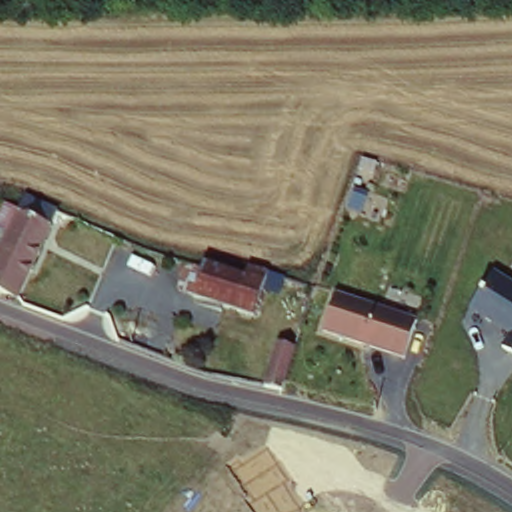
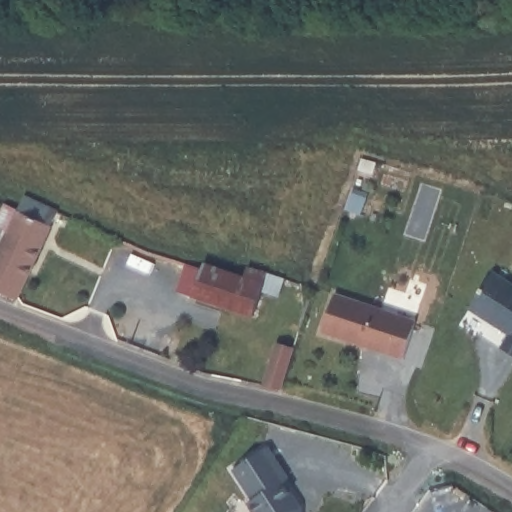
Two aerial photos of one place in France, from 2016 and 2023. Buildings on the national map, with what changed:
unchanged [(15,207),(48,221),(16,303),(0,296),(0,215),(10,219),(15,207)]
unchanged [(250,319),(189,299),(191,293),(175,287),(184,263),(199,267),(203,262),(240,275),(244,264),(268,272),(250,319)]
unchanged [(500,350),(507,335),(472,312),(494,272),(512,283),(512,356),(500,350)]
unchanged [(327,333),(339,294),(419,321),(406,361),(327,333)]
unchanged [(260,388),(275,345),(292,352),(278,392),(260,388)]
new [(281,488),(299,506),(299,512),(258,512),(234,467),(264,446),(285,481),(281,488)]

